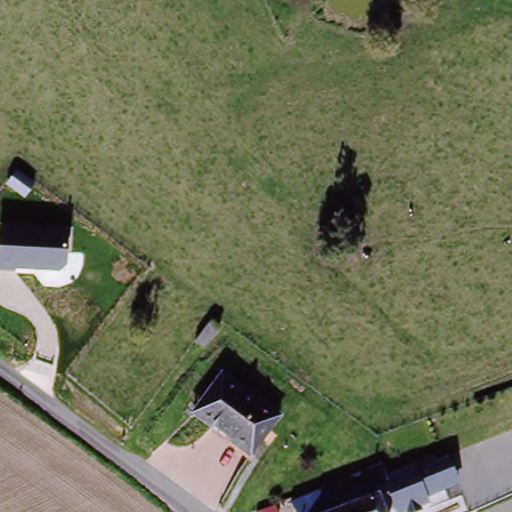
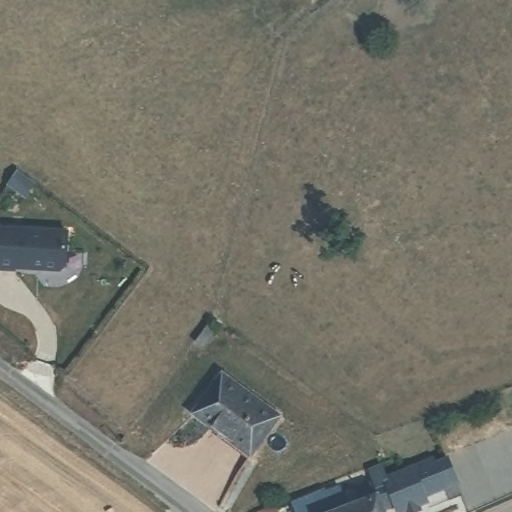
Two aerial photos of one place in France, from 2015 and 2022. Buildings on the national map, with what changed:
unchanged [(63,273),(0,272),(0,224),(66,225),(63,273)]
unchanged [(275,420),(246,457),(192,416),(221,378),(275,420)]
unchanged [(417,475),(430,511),(428,512),(400,512),(400,510),(396,512),(387,512),(380,489),(417,475)]
unchanged [(387,512),(288,512),(287,509),(318,497),(324,511),(380,489),(387,512)]

